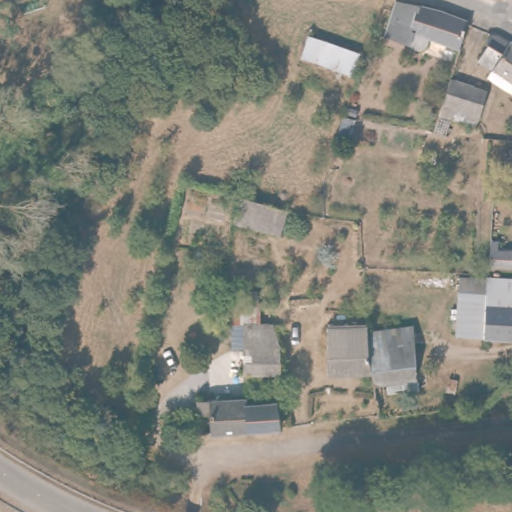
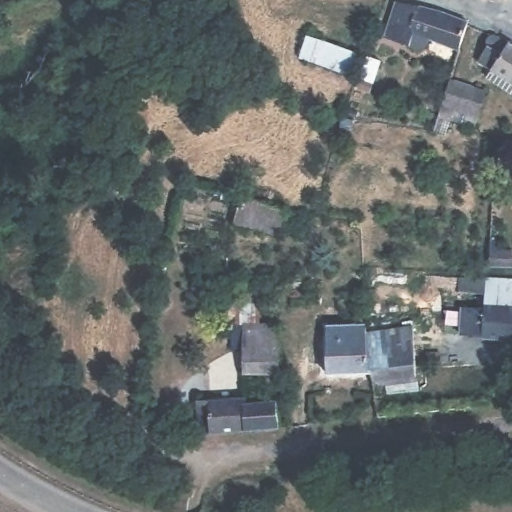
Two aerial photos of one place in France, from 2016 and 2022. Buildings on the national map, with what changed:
unchanged [(426,49),(425,51),(424,53),(423,54),(423,55),(421,56),(420,56),(419,57),(417,57),(414,56),(413,55),(412,55),(411,54),(410,53),(409,51),(395,47),(383,44),(392,10),(403,12),(434,15),(465,25),(457,52),(427,44),(426,49)]
unchanged [(352,79),(296,61),(304,36),(359,54),(352,79)]
unchanged [(512,84),(485,64),(495,37),(509,44),(512,46),(512,84)]
unchanged [(480,86),(470,122),(460,119),(462,107),(453,105),(450,116),(438,113),(449,77),(480,86)]
unchanged [(235,224),(240,199),(287,210),(286,214),(281,234),(235,224)]
unchanged [(478,337),(486,337),(483,308),(481,281),(512,279),(512,344),(478,347),(478,337)]
unchanged [(263,318),(265,367),(228,366),(228,351),(227,320),(263,318)]
unchanged [(363,323),(363,326),(369,326),(373,368),(326,367),(325,334),(325,324),(363,323)]
unchanged [(401,325),(402,347),(418,347),(421,378),(380,381),(373,368),(369,326),(401,325)]
unchanged [(255,398),(255,401),(282,402),(283,431),(221,433),(220,414),(202,413),(202,397),(255,398)]

